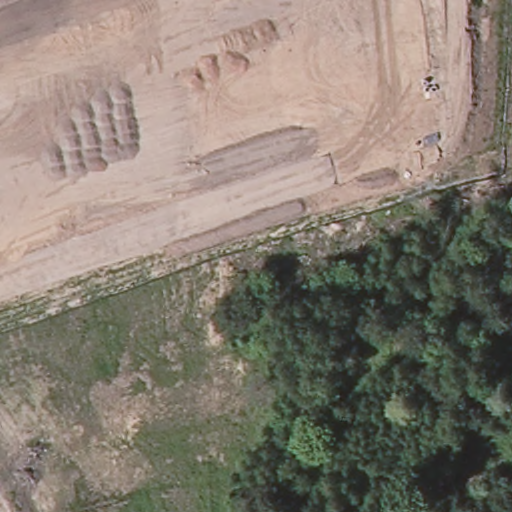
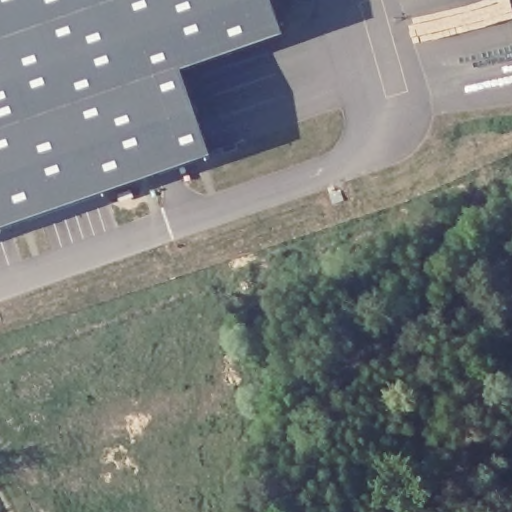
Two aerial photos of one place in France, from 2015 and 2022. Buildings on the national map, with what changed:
new [(269,0),(282,37),(181,71),(210,157),(0,230),(0,0),(269,0)]

